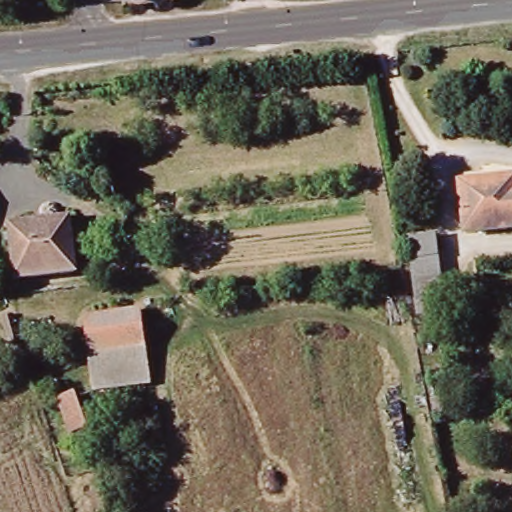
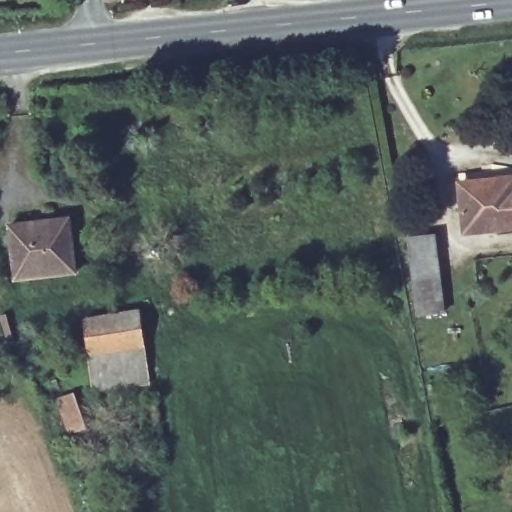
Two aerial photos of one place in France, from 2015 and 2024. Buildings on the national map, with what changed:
unchanged [(461,234),(455,189),(512,180),(512,228),(461,234)]
unchanged [(0,233),(0,222),(19,218),(19,209),(31,207),(32,214),(62,211),(63,225),(66,273),(6,280),(0,233)]
unchanged [(434,236),(441,280),(414,284),(410,239),(434,236)]
unchanged [(81,313),(138,308),(147,378),(89,389),(81,313)]

